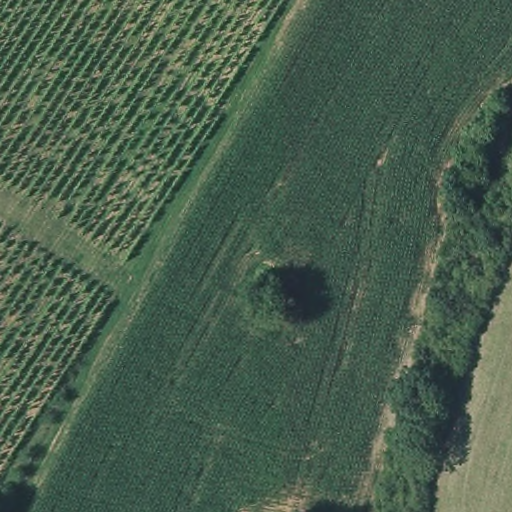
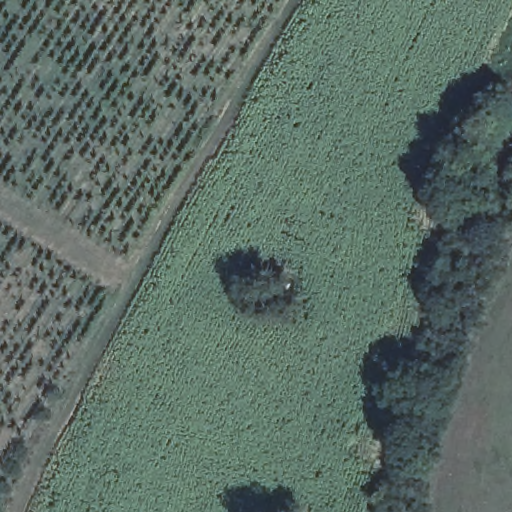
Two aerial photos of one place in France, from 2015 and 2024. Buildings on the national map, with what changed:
unchanged [(265,267),(290,281),(282,297),(257,284),(265,267)]

